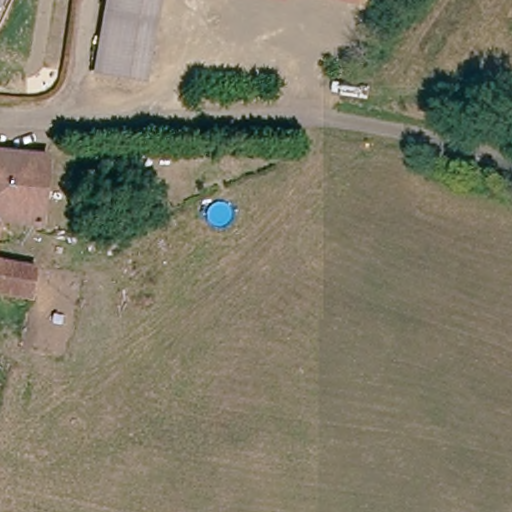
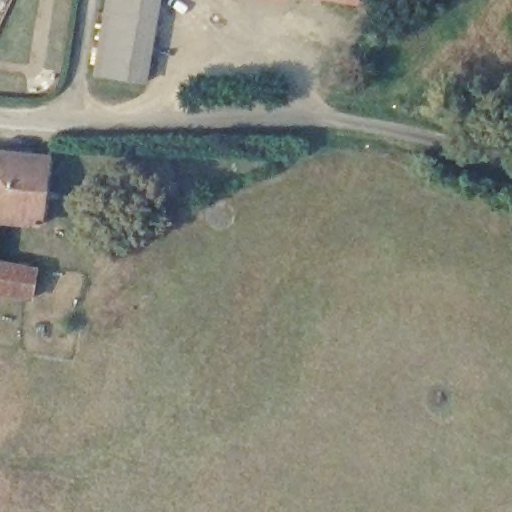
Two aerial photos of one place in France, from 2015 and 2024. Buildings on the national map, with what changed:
unchanged [(155,21),(146,80),(93,71),(107,0),(159,0),(155,21)]
unchanged [(356,4),(341,1),(337,0),(357,0),(356,4)]
unchanged [(53,161),(46,228),(1,226),(0,246),(0,156),(53,161)]
unchanged [(8,292),(8,296),(0,296),(0,267),(42,271),(41,294),(8,292)]

